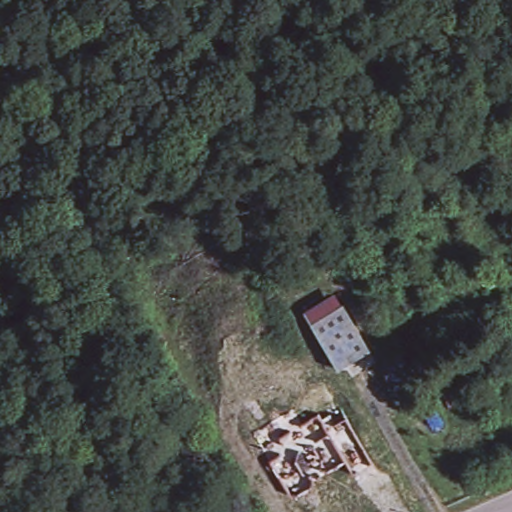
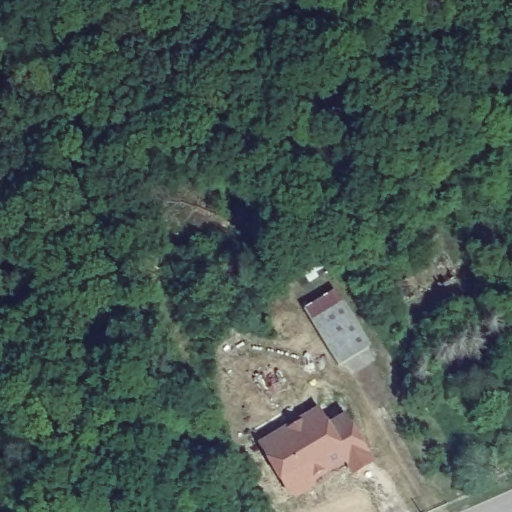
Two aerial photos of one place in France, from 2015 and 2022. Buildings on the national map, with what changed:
unchanged [(444,256),(464,292),(429,317),(421,301),(406,307),(399,285),(444,256)]
unchanged [(338,366),(311,322),(304,311),(335,292),(342,303),(368,347),(338,366)]
new [(313,485),(297,494),(290,492),(269,458),(262,446),(279,435),(319,412),(328,427),(346,416),(373,461),(354,472),(346,460),(329,470),(314,478),(313,485)]

